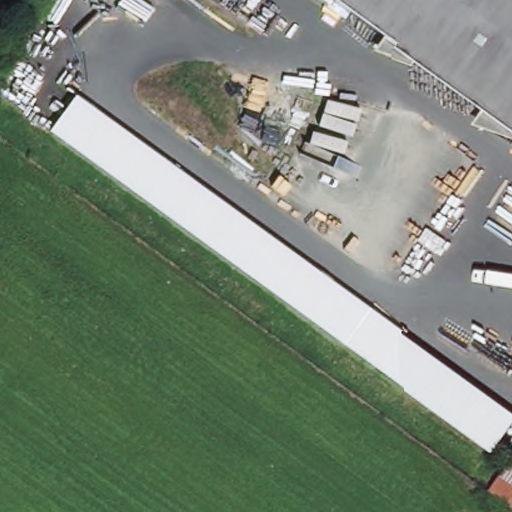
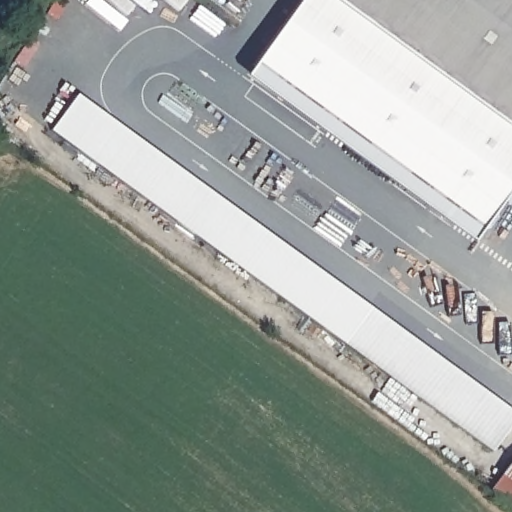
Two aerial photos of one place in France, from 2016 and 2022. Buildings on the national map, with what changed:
new [(512,134),(512,187),(472,242),(242,77),(295,0),(326,0),(512,134)]
unchanged [(326,0),(512,0),(512,134),(326,0)]
unchanged [(345,343),(48,131),(74,94),(372,310),(345,343)]
unchanged [(512,411),(512,422),(493,452),(345,343),(372,310),(512,411)]
unchanged [(491,490),(512,461),(512,506),(491,490)]

